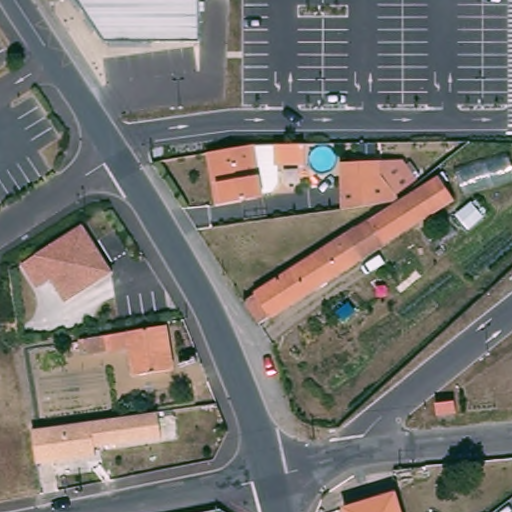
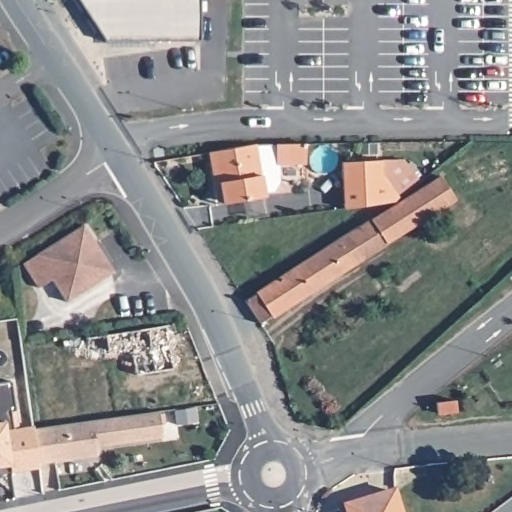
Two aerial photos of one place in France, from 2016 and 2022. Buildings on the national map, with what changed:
unchanged [(201,39),(108,39),(83,0),(200,0),(201,39)]
unchanged [(221,202),(217,180),(212,152),(260,144),(279,143),(309,143),(309,164),(283,164),(282,182),(278,192),(268,193),(269,197),(246,200),(222,204),(221,202)]
unchanged [(345,163),(407,160),(422,180),(401,195),(404,199),(400,203),(348,210),(347,203),(345,163)]
unchanged [(250,302),(443,177),(458,199),(265,324),(250,302)]
unchanged [(116,269),(112,271),(68,299),(54,276),(41,284),(25,260),(48,245),(86,222),(97,240),(116,269)]
unchanged [(167,326),(174,370),(136,375),(132,348),(88,355),(87,348),(82,349),(81,339),(167,326)]
new [(10,380),(14,409),(10,409),(12,428),(32,425),(37,463),(37,466),(9,469),(9,463),(0,464),(0,381),(10,380)]
unchanged [(453,402),(454,410),(446,411),(445,403),(453,402)]
unchanged [(91,452),(40,459),(36,425),(161,407),(165,433),(98,442),(99,446),(100,451),(91,452)]
unchanged [(398,493),(405,512),(350,512),(350,509),(398,493)]

